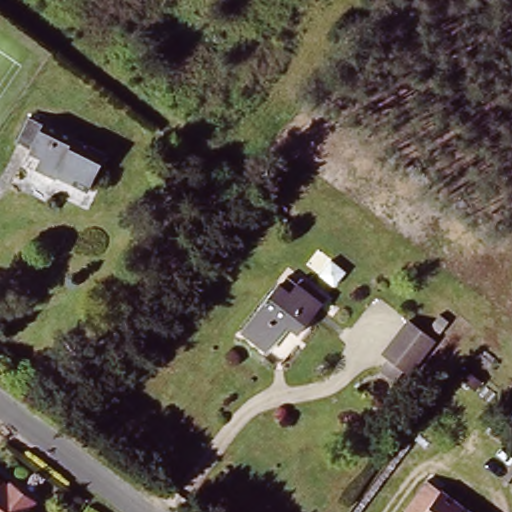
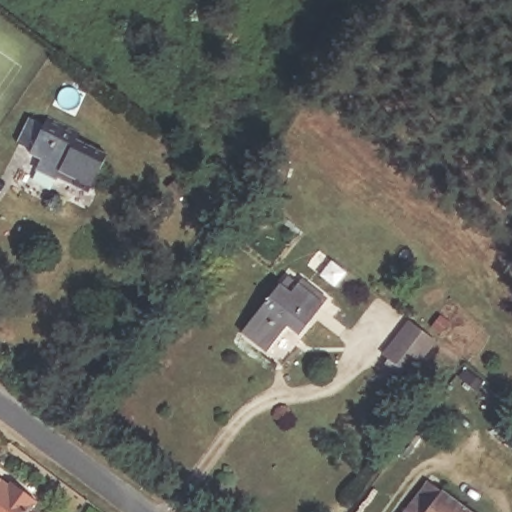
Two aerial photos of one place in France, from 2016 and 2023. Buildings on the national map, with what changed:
unchanged [(103,157),(87,192),(71,185),(72,183),(57,176),(54,183),(32,172),(37,162),(26,156),(28,152),(14,146),(26,121),(40,127),(43,120),(76,136),(73,142),(103,157)]
unchanged [(317,289),(328,299),(308,322),(300,333),(298,331),(292,338),(282,330),(267,349),(242,330),(280,283),(282,285),(290,276),(299,284),(312,294),(317,289)]
unchanged [(437,341),(400,389),(380,374),(417,325),(437,341)]
unchanged [(442,499),(443,497),(463,512),(409,512),(428,488),(442,499)]
unchanged [(0,512),(0,489),(5,493),(7,491),(14,495),(32,509),(29,512),(0,512)]

